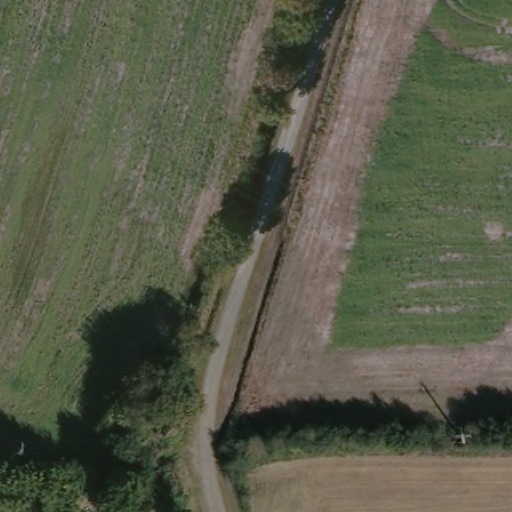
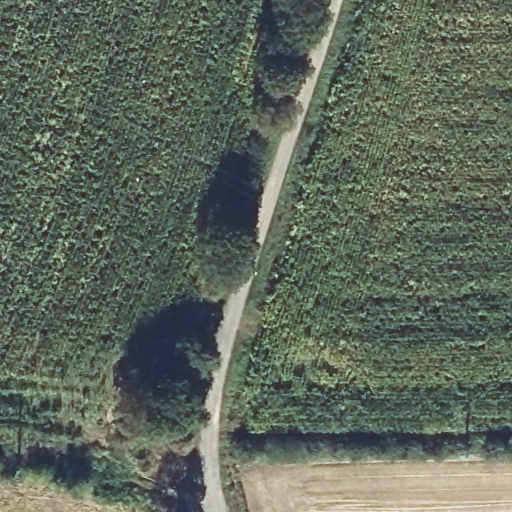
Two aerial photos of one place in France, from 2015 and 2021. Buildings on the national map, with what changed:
unchanged [(73,490),(78,492),(81,484),(101,491),(99,497),(106,500),(104,506),(107,507),(106,512),(81,512),(67,507),(73,490)]

